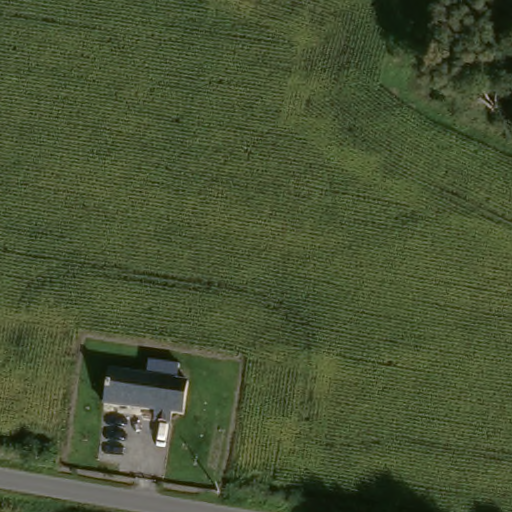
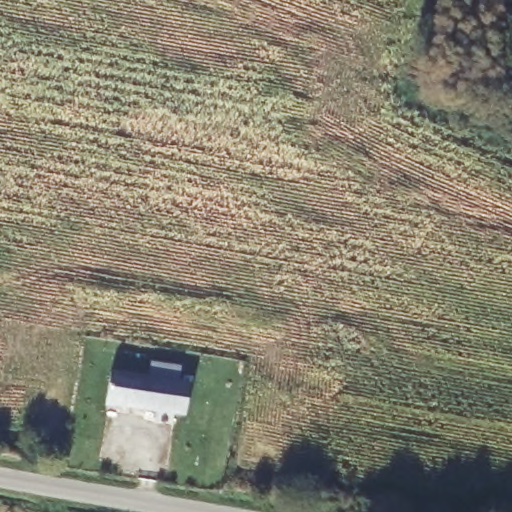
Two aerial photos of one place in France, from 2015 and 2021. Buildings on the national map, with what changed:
unchanged [(149,379),(151,364),(180,369),(178,384),(189,386),(185,416),(174,414),(172,425),(160,423),(161,413),(106,404),(111,373),(149,379)]

